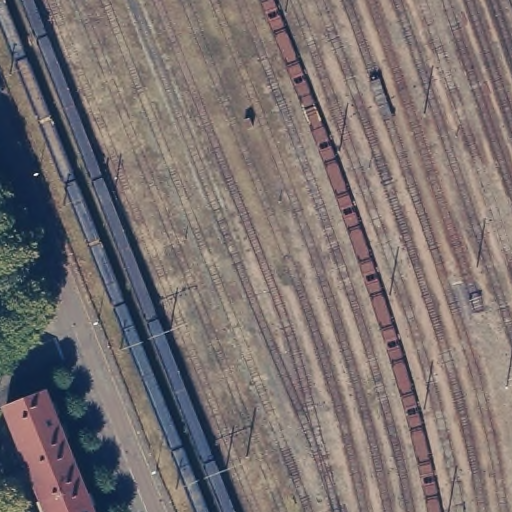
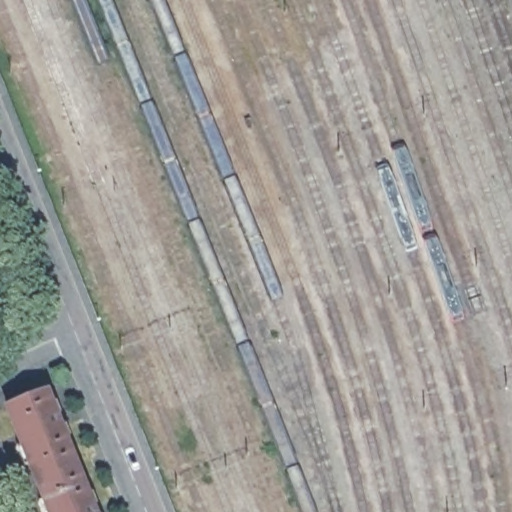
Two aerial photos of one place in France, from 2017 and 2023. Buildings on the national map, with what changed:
unchanged [(88,512),(43,512),(1,407),(40,392),(88,512)]

